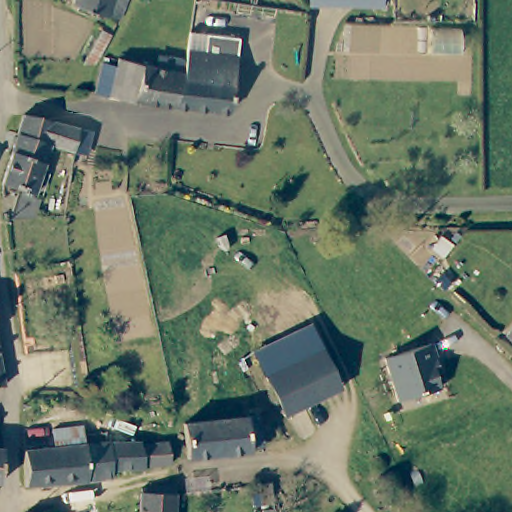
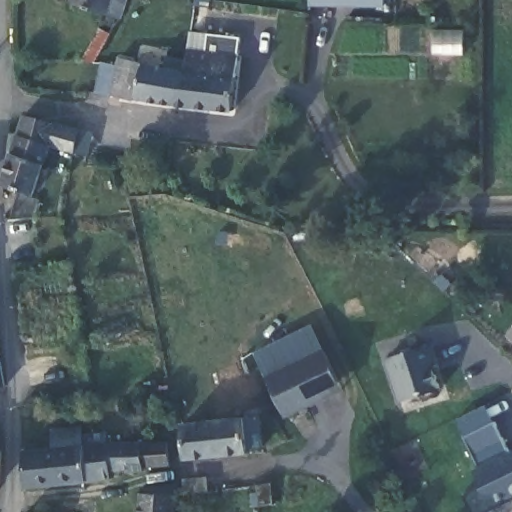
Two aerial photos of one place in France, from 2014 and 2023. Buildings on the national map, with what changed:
demolished [(64,1),(50,0),(65,0),(64,1)]
unchanged [(87,0),(120,0),(114,12),(87,0)]
unchanged [(386,2),(310,0),(308,0),(309,0),(386,0),(386,2)]
unchanged [(116,46),(180,63),(181,48),(203,50),(203,33),(245,37),(234,115),(109,93),(116,46)]
unchanged [(95,153),(79,151),(51,148),(15,143),(5,138),(8,125),(22,125),(21,114),(81,125),(98,126),(95,153)]
unchanged [(51,148),(42,193),(7,187),(15,143),(51,148)]
unchanged [(336,389),(279,415),(257,354),(310,327),(336,389)]
unchanged [(435,343),(440,359),(435,361),(443,388),(403,401),(389,358),(435,343)]
unchanged [(0,389),(0,368),(1,388),(0,389)]
new [(474,470),(481,466),(456,422),(486,406),(512,453),(512,500),(486,512),(472,512),(464,494),(480,487),(474,470)]
unchanged [(182,449),(184,416),(245,419),(245,453),(182,449)]
unchanged [(103,440),(171,427),(175,453),(108,469),(110,478),(24,489),(16,453),(50,449),(47,427),(73,424),(74,431),(100,427),(103,440)]
unchanged [(282,472),(282,490),(264,491),(264,490),(265,472),(282,472)]
unchanged [(138,512),(137,493),(158,492),(158,481),(182,481),(181,493),(181,512),(138,512)]

